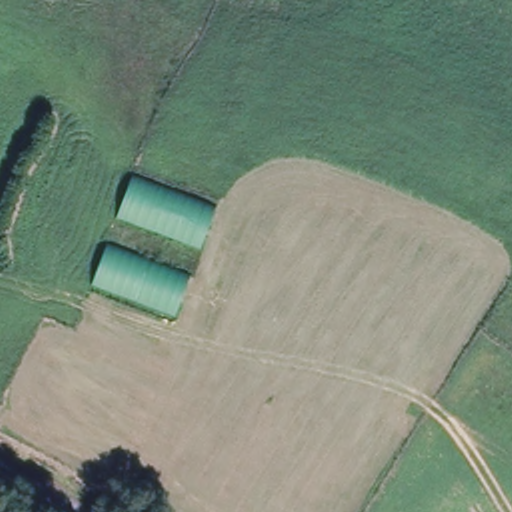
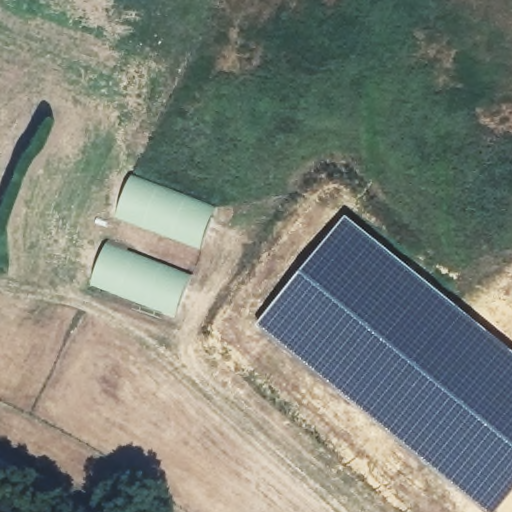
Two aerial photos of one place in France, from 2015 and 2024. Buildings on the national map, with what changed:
unchanged [(117,215),(130,179),(216,211),(204,247),(117,215)]
new [(512,348),(512,490),(493,512),(486,512),(256,323),(347,212),(512,348)]
unchanged [(92,281),(105,246),(189,280),(188,280),(175,314),(92,281)]

